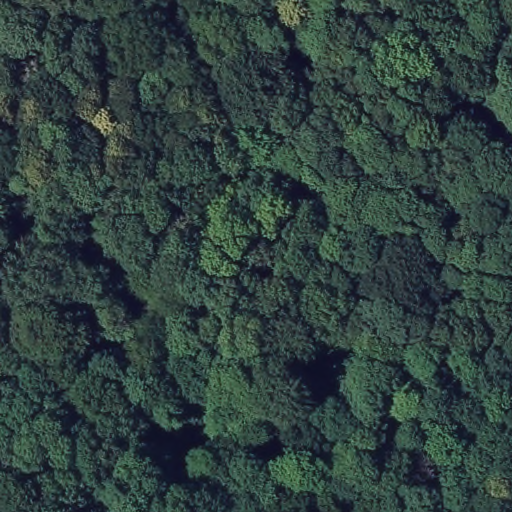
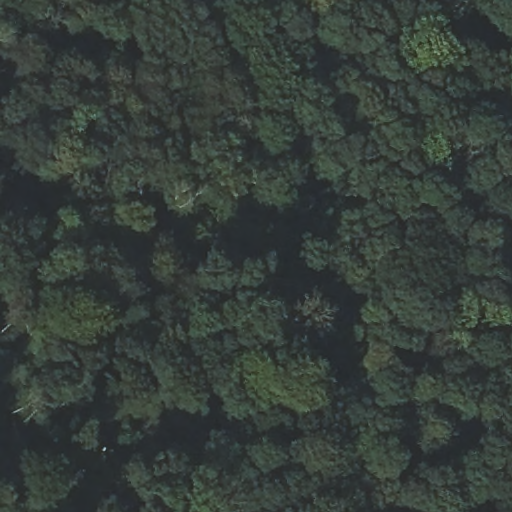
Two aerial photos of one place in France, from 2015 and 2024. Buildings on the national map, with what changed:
[]

